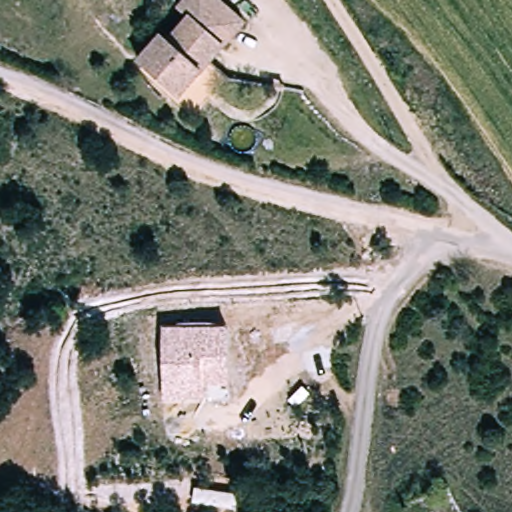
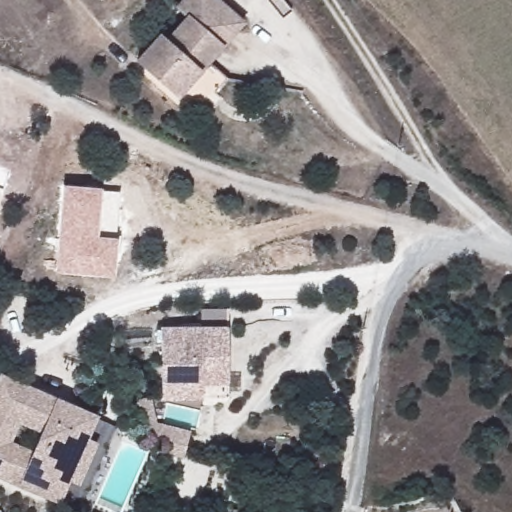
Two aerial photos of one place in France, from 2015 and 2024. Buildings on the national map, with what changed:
unchanged [(153,33),(158,40),(193,14),(184,0),(224,0),(249,34),(161,99),(127,54),(153,33)]
new [(114,277),(56,272),(63,186),(101,189),(98,237),(117,239),(114,277)]
unchanged [(176,326),(176,323),(215,323),(215,326),(228,326),(228,385),(202,384),(203,402),(163,403),(161,327),(176,326)]
new [(100,416),(90,439),(98,442),(78,485),(70,482),(60,505),(18,486),(0,479),(0,375),(0,373),(56,397),(100,416)]
new [(158,422),(192,431),(185,459),(168,455),(170,445),(144,436),(136,401),(152,397),(158,422)]

